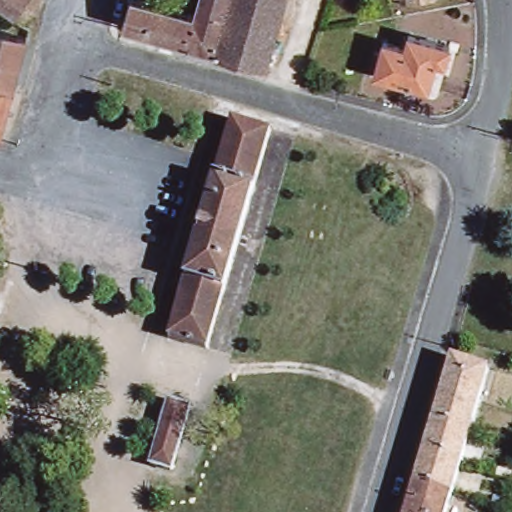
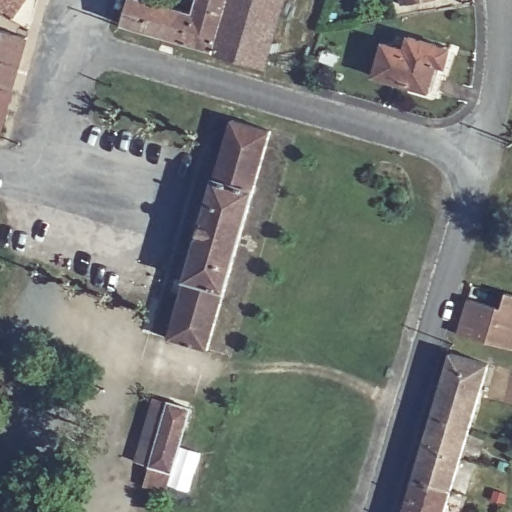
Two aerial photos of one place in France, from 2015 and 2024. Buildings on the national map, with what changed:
unchanged [(16,14),(0,3),(0,0),(26,0),(16,14)]
unchanged [(119,20),(125,0),(158,0),(190,9),(193,0),(280,0),(262,63),(119,20)]
unchanged [(410,2),(410,0),(426,0),(410,2)]
unchanged [(17,59),(0,113),(0,24),(20,29),(25,31),(17,59)]
unchanged [(403,45),(407,32),(450,46),(437,91),(374,72),(384,39),(403,45)]
unchanged [(203,344),(166,333),(195,231),(230,112),(268,124),(239,222),(203,344)]
new [(500,308),(503,292),(512,295),(512,351),(457,335),(468,299),(500,308)]
unchanged [(445,354),(482,364),(472,397),(435,387),(445,354)]
unchanged [(462,429),(426,418),(435,387),(472,397),(462,429)]
unchanged [(187,407),(169,470),(147,464),(165,400),(187,407)]
unchanged [(453,460),(417,449),(426,418),(462,429),(453,460)]
unchanged [(453,460),(443,491),(407,480),(417,449),(453,460)]
unchanged [(443,491),(437,512),(398,512),(407,480),(443,491)]

